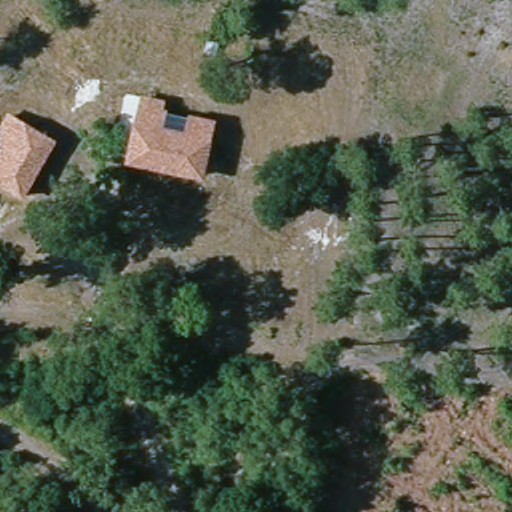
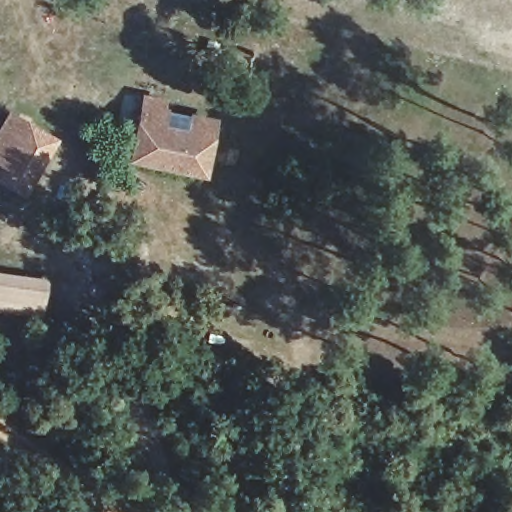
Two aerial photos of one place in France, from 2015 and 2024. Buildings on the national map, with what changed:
unchanged [(141,115),(210,128),(201,175),(131,160),(141,115)]
unchanged [(26,192),(0,176),(0,138),(10,120),(52,144),(26,192)]
new [(45,316),(0,310),(0,272),(49,280),(45,316)]

